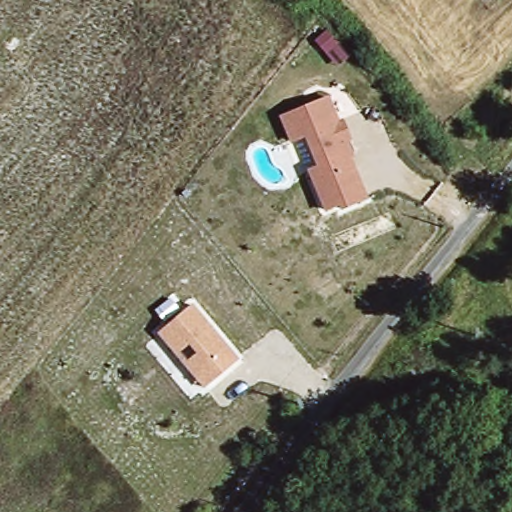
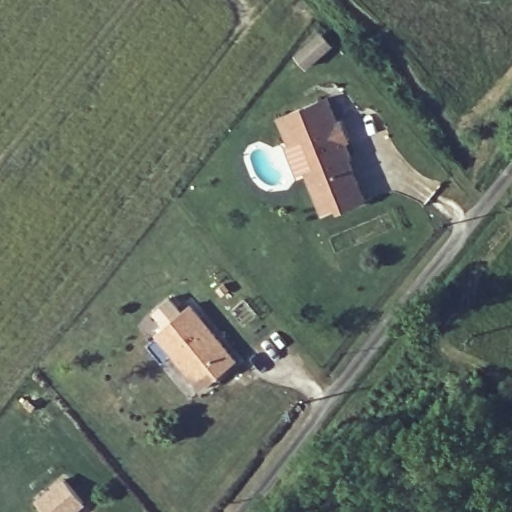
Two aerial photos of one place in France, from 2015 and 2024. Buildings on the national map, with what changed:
unchanged [(279,116),(331,96),(340,119),(346,117),(356,144),(351,146),(356,158),(352,160),(368,201),(345,211),(342,205),(325,213),(308,171),(317,168),(306,140),(289,146),(279,116)]
unchanged [(194,304),(242,358),(205,390),(157,335),(194,304)]
new [(77,512),(47,512),(36,500),(64,477),(87,504),(77,512)]

